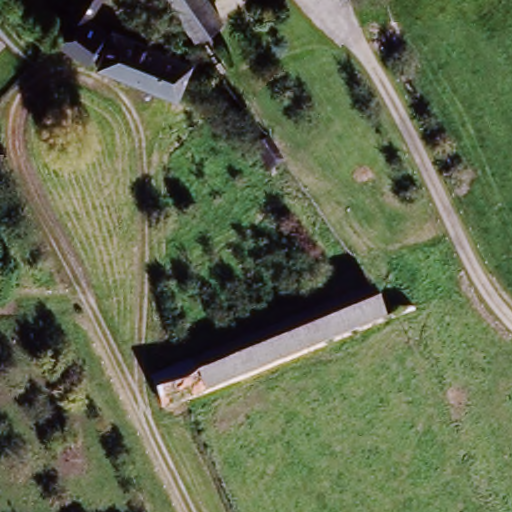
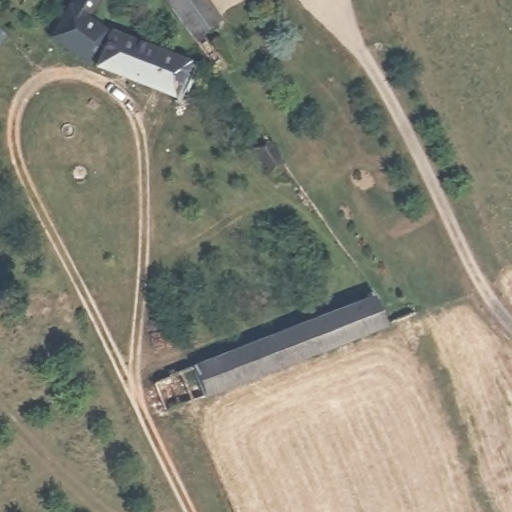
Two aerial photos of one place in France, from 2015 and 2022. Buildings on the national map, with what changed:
unchanged [(89,64),(52,43),(72,9),(77,0),(105,0),(88,32),(104,40),(89,64)]
unchanged [(197,41),(170,0),(210,0),(225,23),(197,41)]
unchanged [(3,32),(0,36),(0,29),(3,32)]
unchanged [(101,67),(115,33),(146,46),(193,66),(178,100),(101,67)]
unchanged [(278,180),(269,187),(250,162),(258,155),(278,180)]
unchanged [(375,292),(388,325),(378,329),(189,407),(173,414),(158,420),(145,390),(375,292)]

